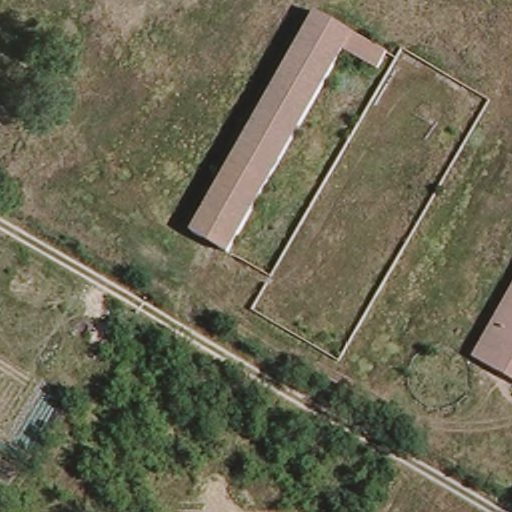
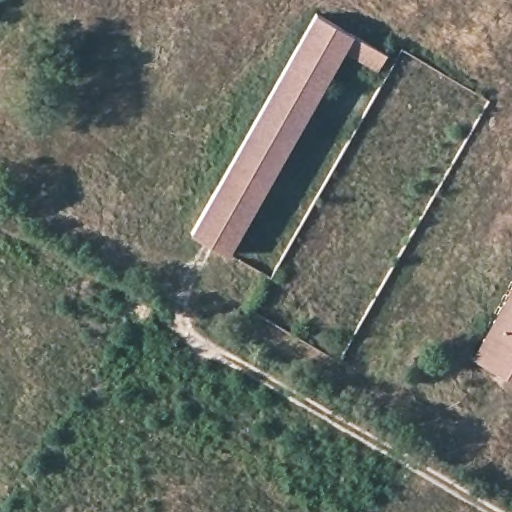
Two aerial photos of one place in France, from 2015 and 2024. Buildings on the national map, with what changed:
unchanged [(381,51),(370,70),(338,52),(224,255),(186,234),(311,13),(381,51)]
unchanged [(512,289),(512,306),(480,361),(473,357),(512,289)]
unchanged [(512,380),(480,361),(512,306),(512,380)]

